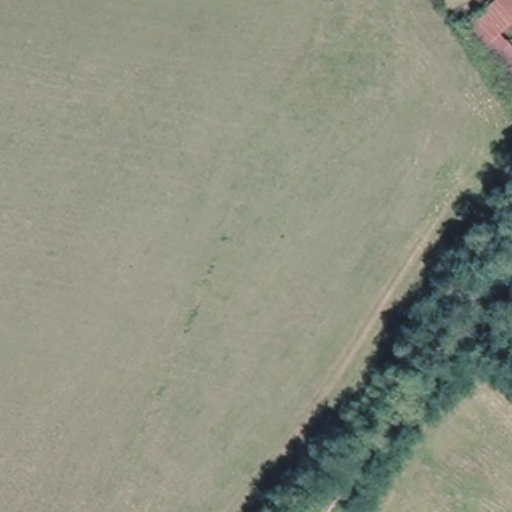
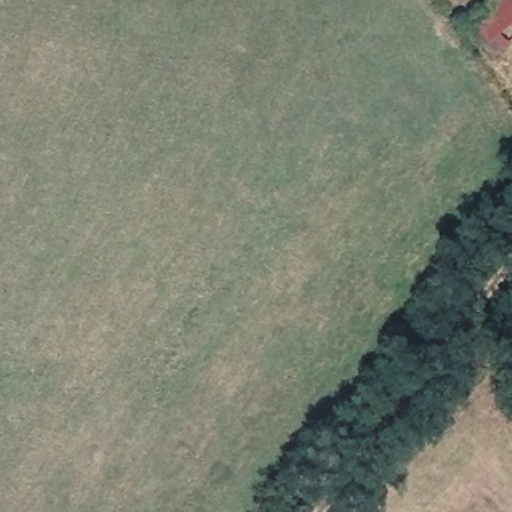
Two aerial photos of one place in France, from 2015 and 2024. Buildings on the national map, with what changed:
unchanged [(486,0),(512,0),(512,22),(501,33),(512,46),(512,87),(460,24),(486,0)]

